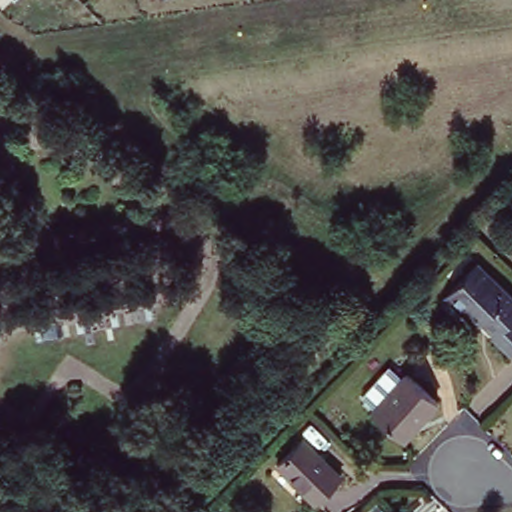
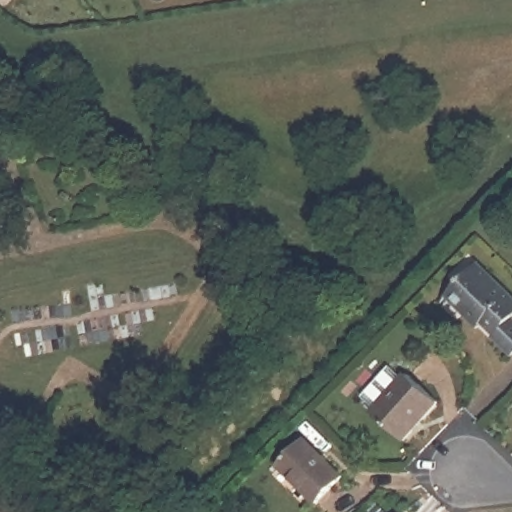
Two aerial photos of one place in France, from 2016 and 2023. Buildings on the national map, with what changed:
unchanged [(512,303),(512,359),(511,360),(494,342),(497,340),(470,313),(465,317),(446,298),(477,268),(512,303)]
unchanged [(402,375),(432,402),(399,440),(368,412),(402,375)]
unchanged [(304,445),(339,480),(314,506),(279,471),(304,445)]

